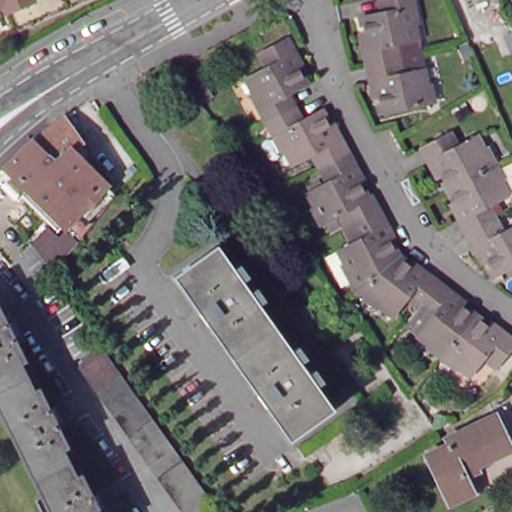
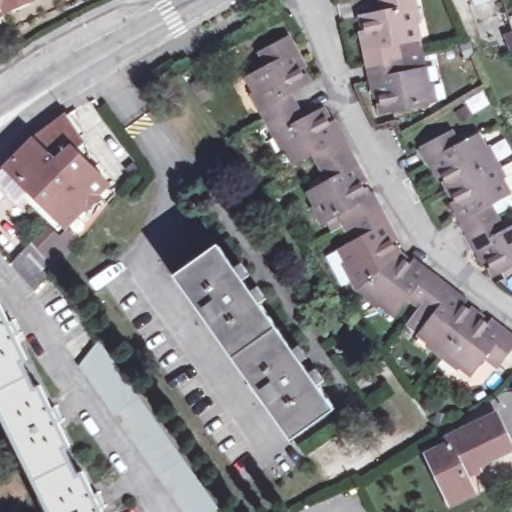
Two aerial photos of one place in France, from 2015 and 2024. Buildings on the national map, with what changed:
unchanged [(0,30),(0,0),(70,0),(0,30)]
unchanged [(443,104),(435,106),(387,115),(384,98),(378,100),(374,83),(371,67),(367,53),(364,36),(370,35),(366,19),(389,15),(387,0),(421,0),(423,8),(426,23),(418,25),(422,41),(399,45),(406,76),(429,71),(432,86),(439,85),(443,104)]
unchanged [(354,261),(346,246),(366,234),(349,206),(333,216),(326,220),(318,206),(324,202),(316,186),(334,176),(319,149),(301,159),(294,145),(288,148),(279,133),(266,106),(258,91),(264,88),(256,75),(276,63),(268,49),(296,34),(304,50),(311,64),(305,67),(313,81),(299,89),(304,101),(312,115),(326,107),(334,124),(341,121),(349,135),(356,148),(364,164),(372,177),(364,182),(371,194),(379,190),(386,205),(394,220),(402,235),(396,238),(404,254),(416,262),(420,257),(435,269),(448,279),(459,288),(474,299),(468,306),(479,315),(493,325),(498,317),(512,328),(512,358),(508,364),(494,354),(482,372),(467,362),(463,368),(449,358),(434,347),(439,340),(428,332),(440,314),(416,296),(404,313),(389,302),(384,308),(362,291),(348,264),(354,261)]
unchanged [(66,122),(84,145),(91,154),(83,160),(89,167),(73,182),(95,202),(65,231),(6,173),(33,147),(37,144),(46,136),(57,127),(66,122)]
unchanged [(469,237),(473,235),(466,223),(462,225),(452,207),(458,203),(452,192),(444,177),(438,180),(430,166),(423,152),(451,135),(459,150),(479,139),(487,154),(493,150),(502,165),(510,181),(504,185),(511,198),(491,208),(499,222),(506,235),(512,232),(512,271),(499,278),(491,263),(484,266),(476,251),(469,237)]
unchanged [(294,442),(178,277),(223,246),(339,410),(294,442)]
unchanged [(0,313),(2,316),(5,315),(10,323),(13,321),(20,334),(16,336),(20,344),(16,346),(45,404),(49,402),(52,409),(55,408),(61,420),(58,421),(62,429),(58,431),(86,488),(89,486),(93,494),(98,492),(104,506),(100,507),(103,512),(53,512),(0,407),(0,313)]
unchanged [(203,512),(187,512),(76,359),(88,352),(85,348),(98,338),(216,503),(203,512)]
unchanged [(453,500),(431,454),(452,444),(449,435),(497,411),(512,444),(512,447),(465,469),(474,490),(453,500)]

